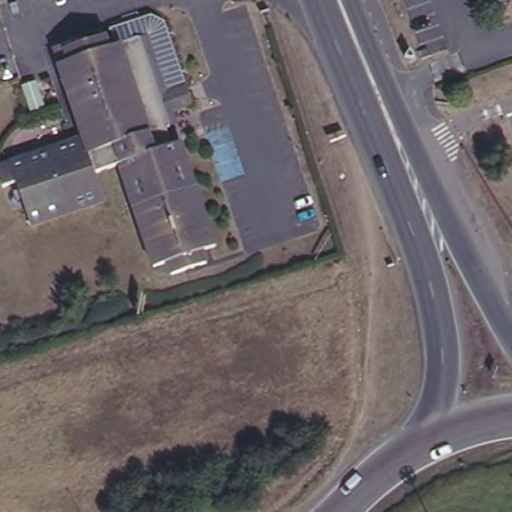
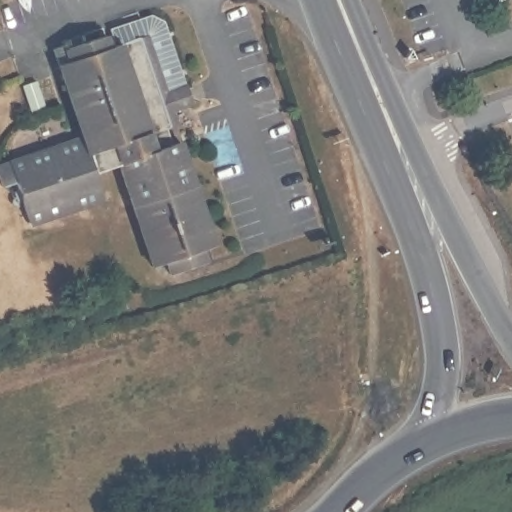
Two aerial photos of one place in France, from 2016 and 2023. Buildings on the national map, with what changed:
unchanged [(116,29),(157,15),(170,22),(192,88),(198,103),(170,112),(175,126),(171,128),(175,138),(177,145),(186,142),(220,246),(207,250),(211,262),(176,274),(172,262),(159,267),(125,165),(101,173),(109,199),(36,224),(22,182),(8,187),(1,167),(89,138),(59,48),(70,44),(71,48),(111,35),(115,48),(122,45),(116,29)]
unchanged [(32,115),(22,86),(37,81),(47,109),(32,115)]

